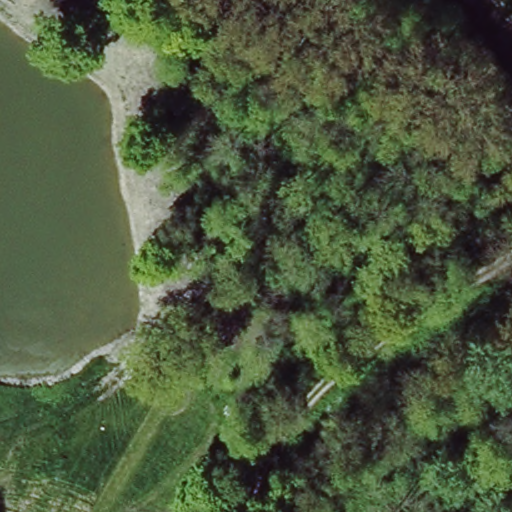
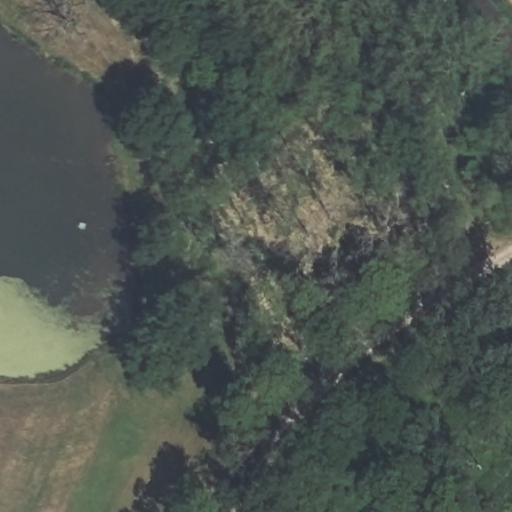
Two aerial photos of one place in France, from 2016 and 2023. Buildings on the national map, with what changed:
unchanged [(489,56),(489,81),(474,82),(469,50),(489,56)]

